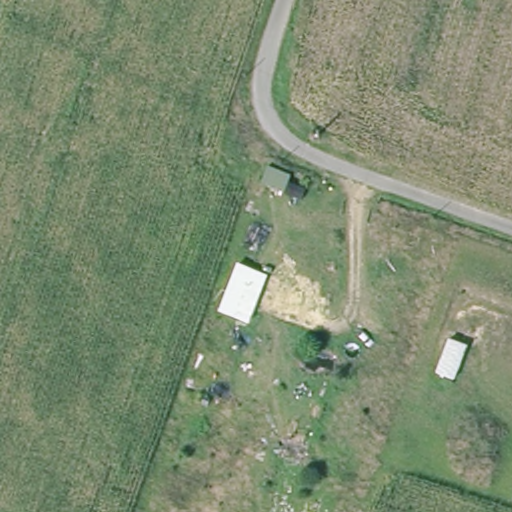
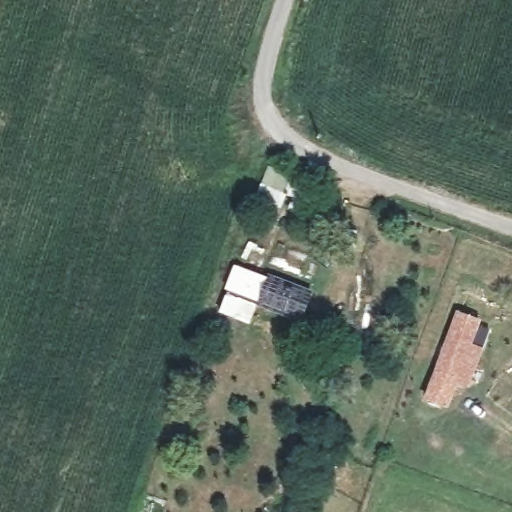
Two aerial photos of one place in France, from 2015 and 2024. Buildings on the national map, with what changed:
unchanged [(237,265),(268,277),(252,324),(220,314),(237,265)]
new [(480,320),(472,344),(483,348),(468,389),(456,384),(446,408),(423,399),(454,311),(480,320)]

